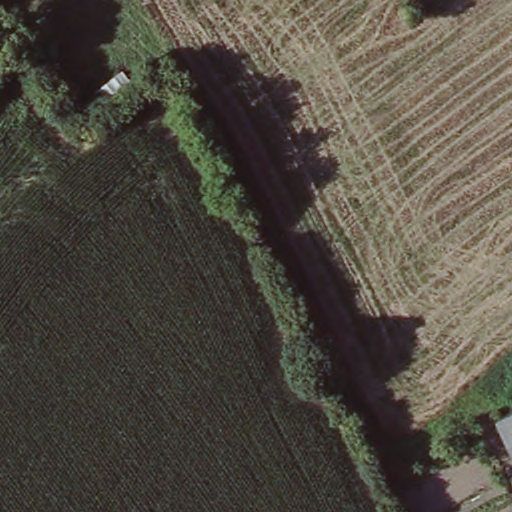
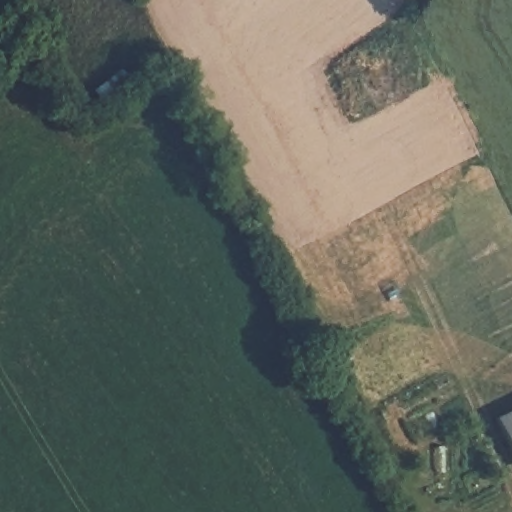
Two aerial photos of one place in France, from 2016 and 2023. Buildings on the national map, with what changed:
unchanged [(491,415),(512,406),(512,459),(491,415)]

